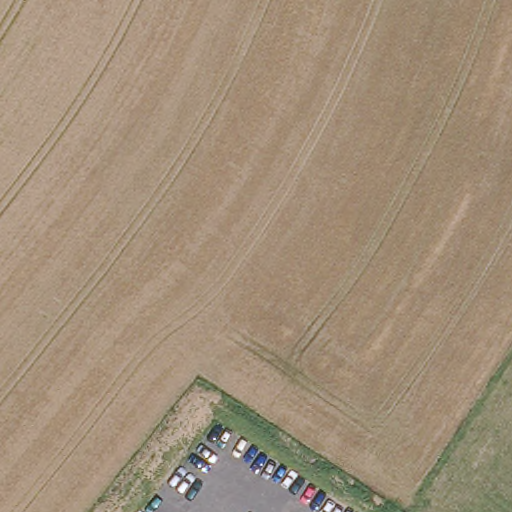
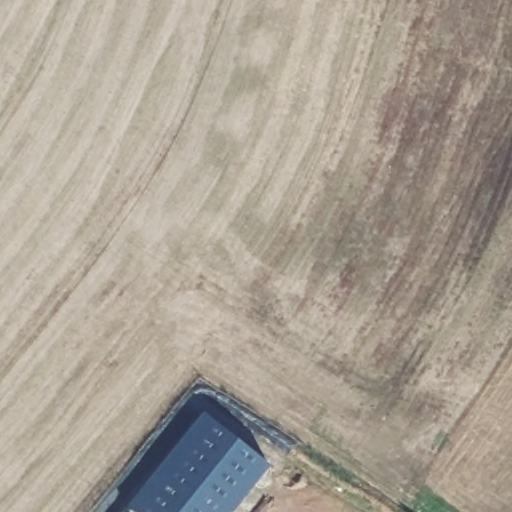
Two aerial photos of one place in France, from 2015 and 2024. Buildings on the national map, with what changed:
new [(202,412),(268,466),(231,512),(135,512),(127,505),(202,412)]

